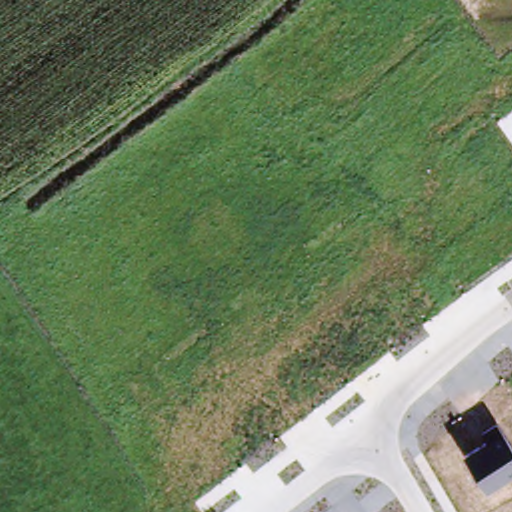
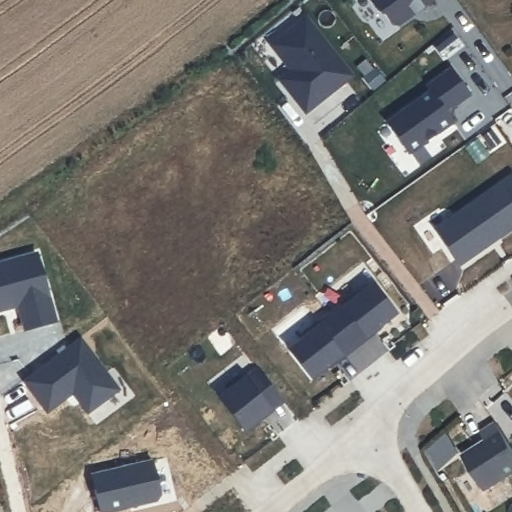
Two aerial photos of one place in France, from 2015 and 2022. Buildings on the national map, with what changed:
new [(431,0),(389,30),(367,0),(431,0)]
new [(284,88),(295,79),(269,44),(305,17),(350,75),(303,113),(284,88)]
new [(386,121),(429,90),(426,85),(449,69),(467,95),(452,105),(450,117),(448,118),(452,124),(437,134),(436,131),(407,152),(386,121)]
new [(277,79),(289,70),(295,79),(284,88),(277,79)]
new [(512,177),(512,226),(458,265),(432,230),(510,174),(512,177)]
new [(22,238),(61,296),(34,313),(20,293),(14,297),(12,295),(6,299),(6,302),(0,305),(0,252),(22,238)]
new [(339,304),(352,294),(354,297),(371,284),(394,314),(376,327),(374,324),(362,334),(350,344),(338,329),(326,314),(339,304)]
new [(309,379),(286,349),(303,337),(301,334),(315,324),(326,314),(350,344),(338,353),(325,363),(327,366),(309,379)]
new [(77,335),(116,387),(85,411),(69,390),(44,409),(21,378),(77,335)]
new [(244,378),(256,369),(281,401),(269,411),(243,431),(217,399),(244,378)]
unchanged [(487,441),(483,434),(498,424),(512,444),(512,474),(486,491),(462,457),(487,441)]
new [(151,459),(159,492),(155,499),(99,512),(90,473),(151,459)]

